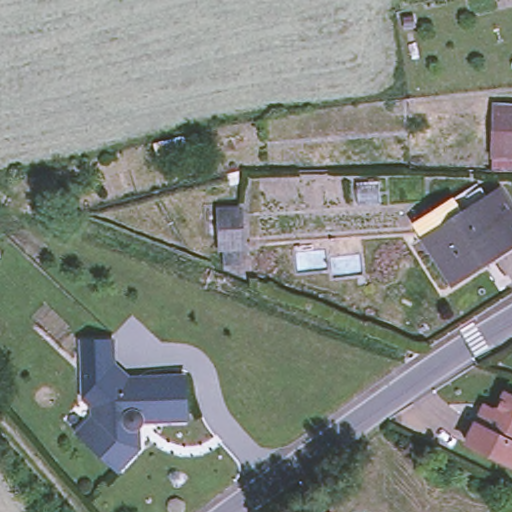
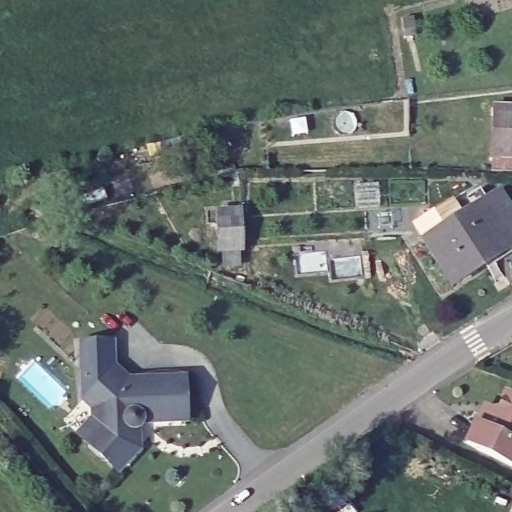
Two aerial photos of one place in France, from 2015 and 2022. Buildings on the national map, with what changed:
unchanged [(492,162),(493,146),(494,96),(512,97),(512,163),(492,162)]
unchanged [(187,147),(158,155),(154,144),(183,136),(187,147)]
unchanged [(453,280),(418,224),(414,220),(478,179),(488,194),(499,186),(512,206),(512,242),(508,244),(486,259),(453,280)]
unchanged [(379,182),(381,205),(358,206),(356,183),(379,182)]
unchanged [(28,226),(29,228),(0,238),(0,214),(23,207),(28,226)]
unchanged [(218,266),(218,250),(216,250),(214,209),(235,209),(236,249),(233,249),(233,265),(218,266)]
unchanged [(82,342),(113,341),(113,367),(84,398),(82,342)]
unchanged [(104,416),(84,398),(113,367),(134,386),(141,385),(141,380),(185,378),(186,420),(153,421),(144,422),(138,428),(138,449),(118,470),(90,444),(78,433),(92,419),(98,422),(104,416)]
unchanged [(457,438),(471,409),(475,401),(488,407),(496,390),(512,398),(512,465),(457,438)]
unchanged [(337,512),(323,512),(329,505),(337,512)]
unchanged [(364,512),(363,512),(364,511),(364,512)]

